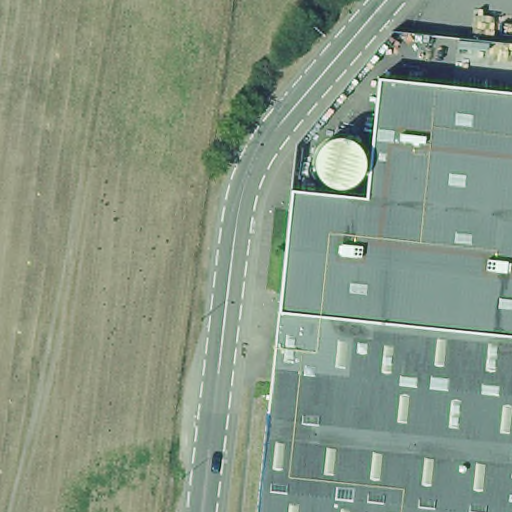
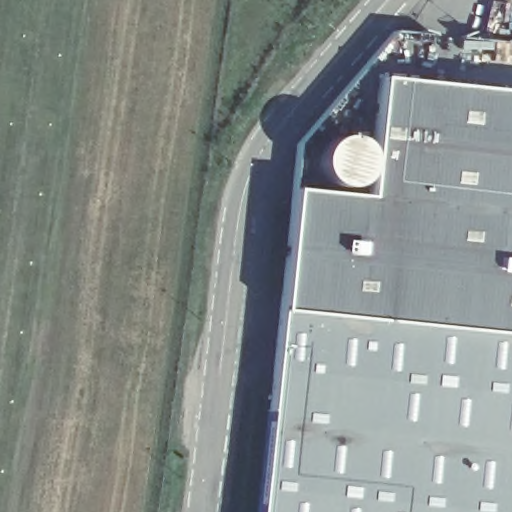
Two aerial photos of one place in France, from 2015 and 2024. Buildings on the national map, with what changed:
unchanged [(279,319),(292,194),(376,201),(379,158),(383,83),(512,96),(512,512),(259,512),(279,319)]

